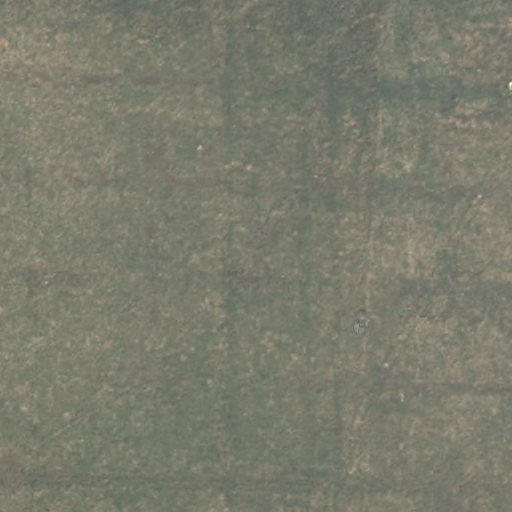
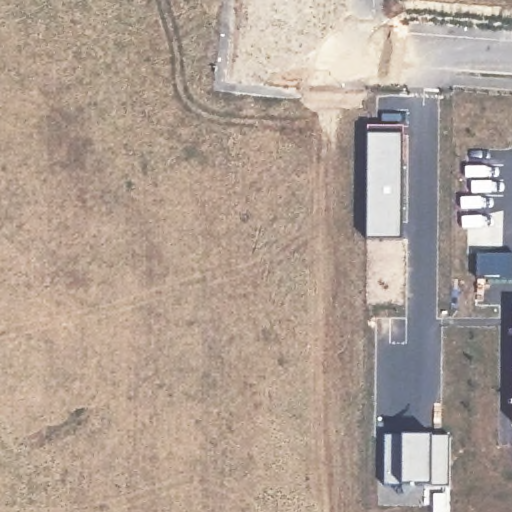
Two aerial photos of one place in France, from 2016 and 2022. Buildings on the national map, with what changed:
new [(366,240),(367,127),(403,127),(402,240),(366,240)]
new [(433,486),(403,486),(384,486),(385,436),(403,436),(433,436),(450,437),(450,486),(433,486)]

